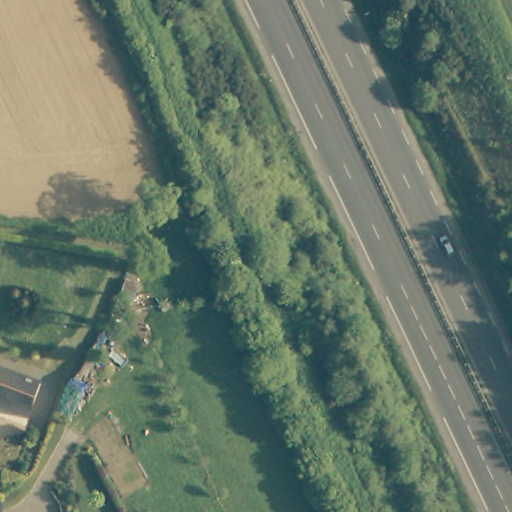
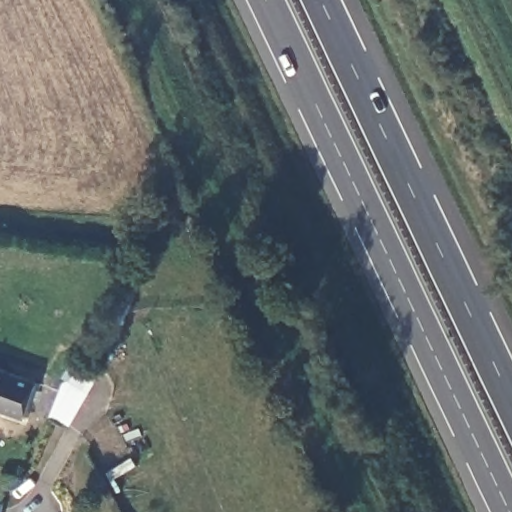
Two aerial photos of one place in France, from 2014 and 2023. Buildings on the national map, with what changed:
unchanged [(0,366),(39,378),(27,414),(0,405),(0,366)]

